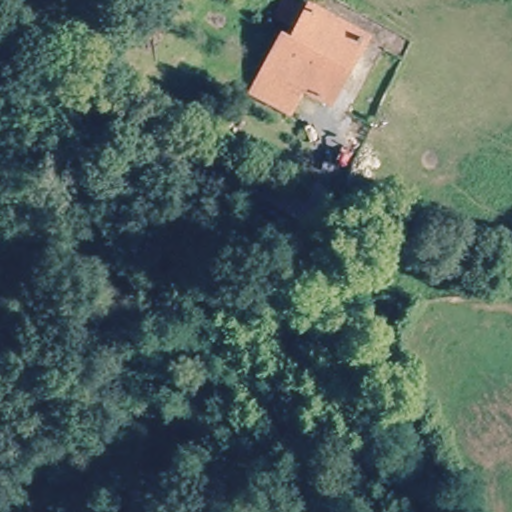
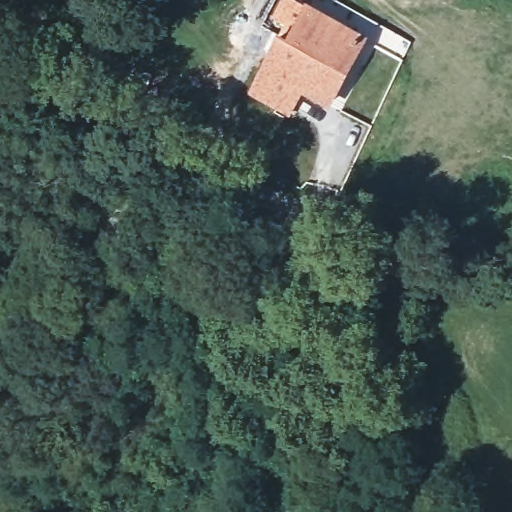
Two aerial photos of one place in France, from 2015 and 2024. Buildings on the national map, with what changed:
unchanged [(338,101),(309,86),(273,69),(295,26),(282,18),(292,0),(301,0),(373,36),(338,101)]
unchanged [(298,109),(260,91),(273,69),(309,86),(298,109)]

